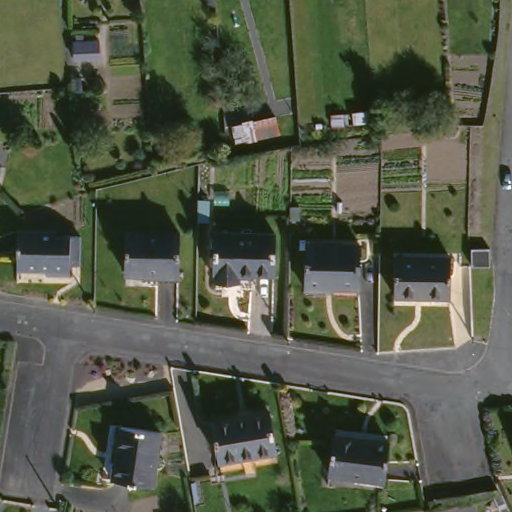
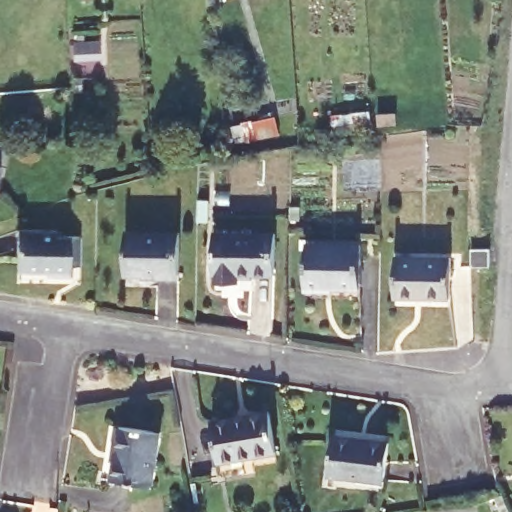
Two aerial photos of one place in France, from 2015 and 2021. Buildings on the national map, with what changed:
unchanged [(4,202),(0,201),(0,167),(11,169),(4,202)]
unchanged [(169,236),(169,277),(151,277),(151,283),(138,284),(138,276),(121,276),(121,236),(169,236)]
unchanged [(268,236),(268,278),(250,278),(250,291),(213,291),(213,236),(268,236)]
unchanged [(71,243),(69,270),(61,270),(61,276),(9,273),(11,241),(71,243)]
unchanged [(351,251),(351,298),(302,297),(303,250),(351,251)]
unchanged [(446,267),(444,305),(388,302),(391,265),(446,267)]
unchanged [(259,417),(266,457),(213,466),(207,426),(259,417)]
unchanged [(159,436),(152,488),(111,483),(118,431),(159,436)]
unchanged [(386,448),(381,486),(328,477),(333,441),(386,448)]

